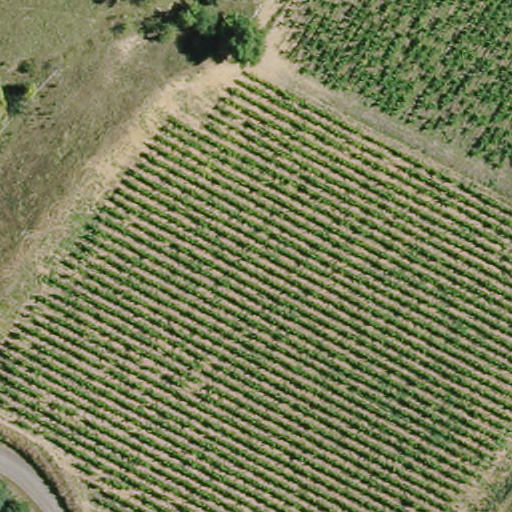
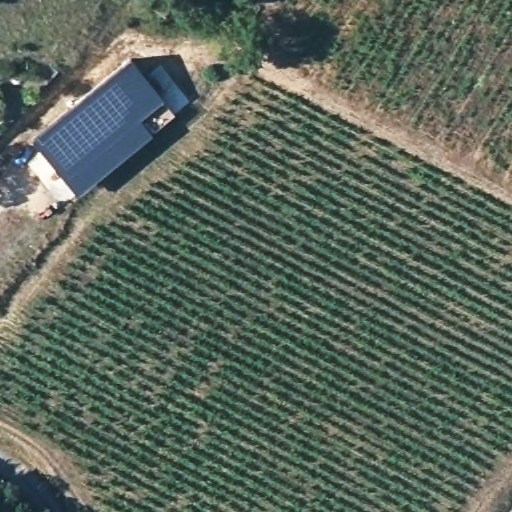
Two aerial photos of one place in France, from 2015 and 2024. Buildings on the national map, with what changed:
new [(163,99),(140,119),(153,133),(78,195),(33,139),(132,59),(163,99)]

